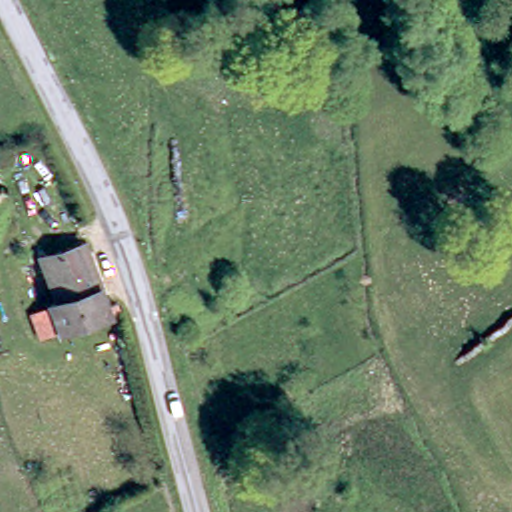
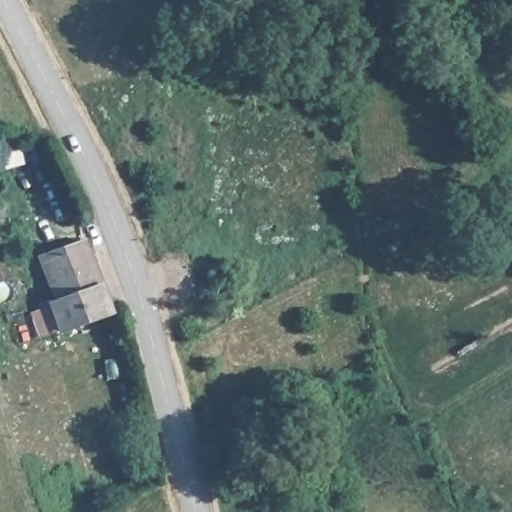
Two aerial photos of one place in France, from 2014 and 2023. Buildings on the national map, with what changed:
unchanged [(120,314),(66,333),(58,310),(50,313),(34,269),(95,247),(120,314)]

